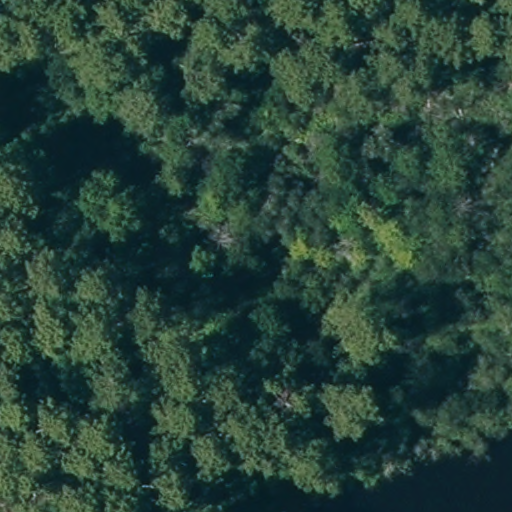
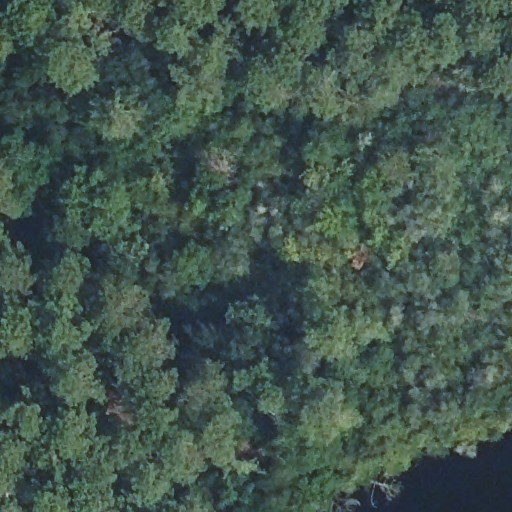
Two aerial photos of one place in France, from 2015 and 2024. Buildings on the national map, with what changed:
[]

